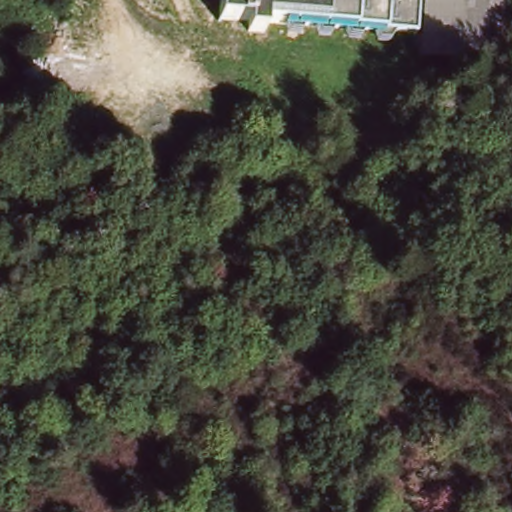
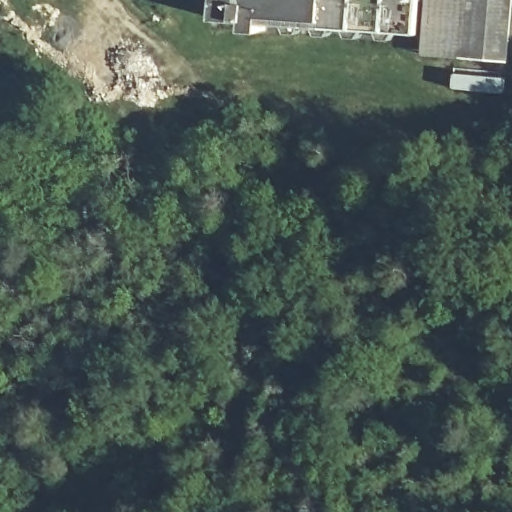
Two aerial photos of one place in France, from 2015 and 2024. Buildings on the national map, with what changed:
unchanged [(223,17),(224,0),(360,0),(359,27),(223,17)]
unchanged [(419,32),(359,27),(360,0),(434,0),(432,17),(428,17),(419,16),(419,32)]
unchanged [(426,51),(428,17),(432,17),(434,0),(472,0),(469,54),(426,51)]
unchanged [(469,54),(472,0),(511,0),(508,57),(469,54)]

